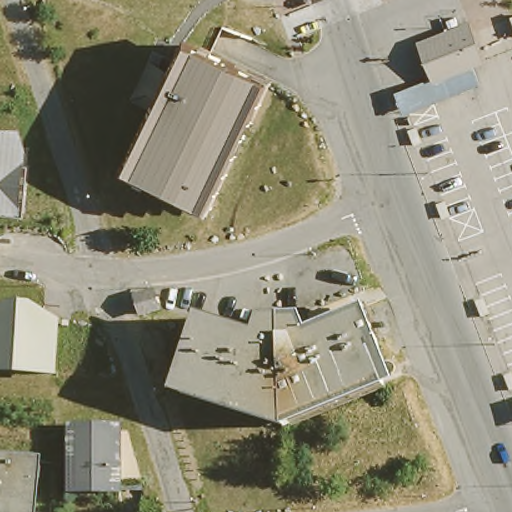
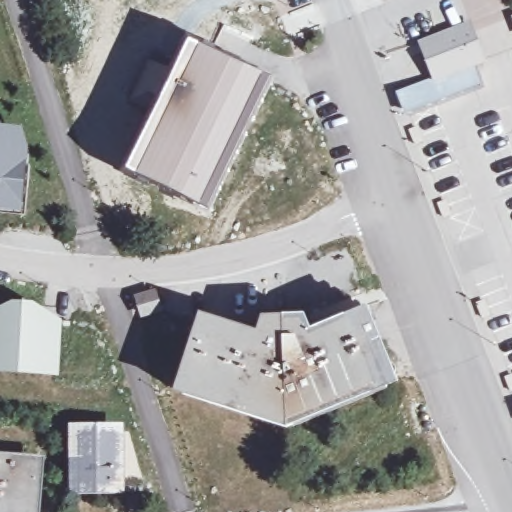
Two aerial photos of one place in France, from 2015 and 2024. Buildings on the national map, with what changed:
unchanged [(512,11),(512,16),(510,12),(512,11)]
unchanged [(469,20),(490,63),(474,70),(480,85),(400,114),(392,94),(430,80),(415,38),(469,20)]
unchanged [(190,48),(264,84),(205,208),(130,172),(157,116),(176,76),(190,48)]
unchanged [(132,103),(151,65),(176,76),(157,116),(132,103)]
unchanged [(31,213),(0,210),(0,123),(34,127),(31,213)]
unchanged [(414,123),(420,136),(414,139),(408,125),(414,123)]
unchanged [(444,196),(449,209),(443,211),(437,199),(444,196)]
unchanged [(142,314),(139,298),(157,295),(161,311),(142,314)]
unchanged [(483,296),(489,309),(482,311),(477,298),(483,296)]
unchanged [(16,311),(17,304),(32,305),(32,312),(42,314),(42,321),(60,322),(55,375),(0,371),(0,309),(7,310),(16,311)]
unchanged [(284,431),(182,396),(202,338),(250,354),(260,334),(300,333),(352,317),(382,396),(284,431)]
unchanged [(512,369),(512,384),(512,385),(507,372),(512,369)]
unchanged [(67,483),(69,432),(122,435),(134,486),(67,483)]
unchanged [(34,512),(0,512),(0,449),(39,452),(34,512)]

